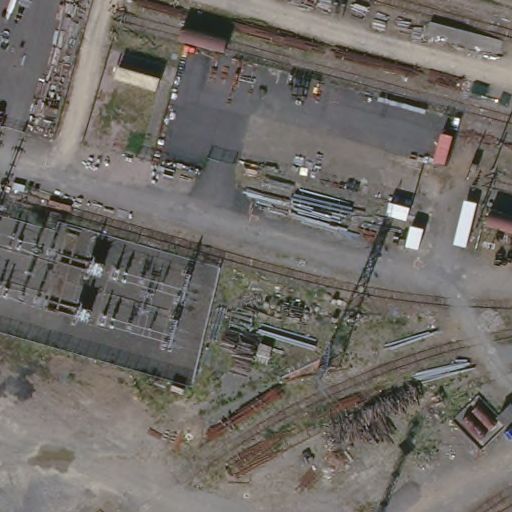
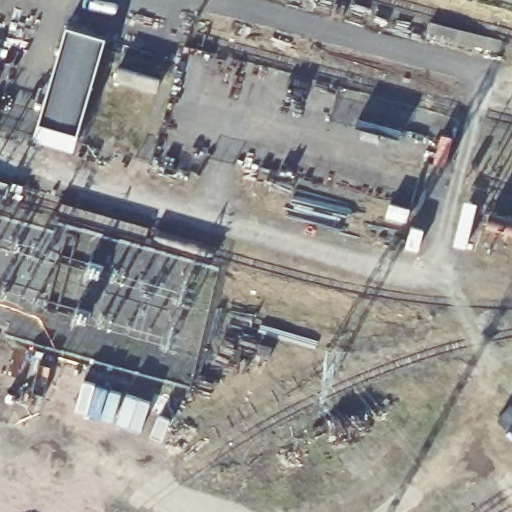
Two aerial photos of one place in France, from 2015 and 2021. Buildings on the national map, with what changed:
new [(105,39),(78,133),(73,150),(35,138),(40,121),(67,27),(105,39)]

